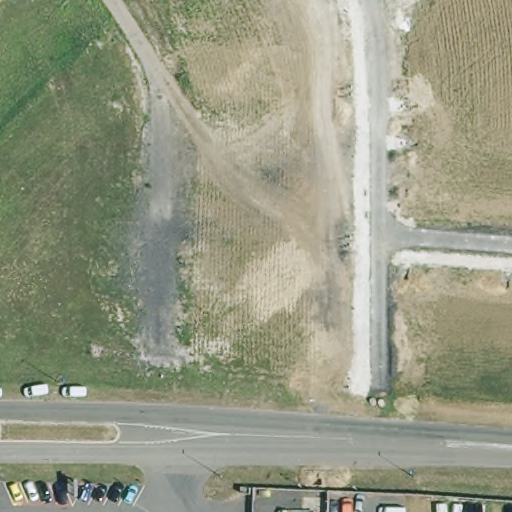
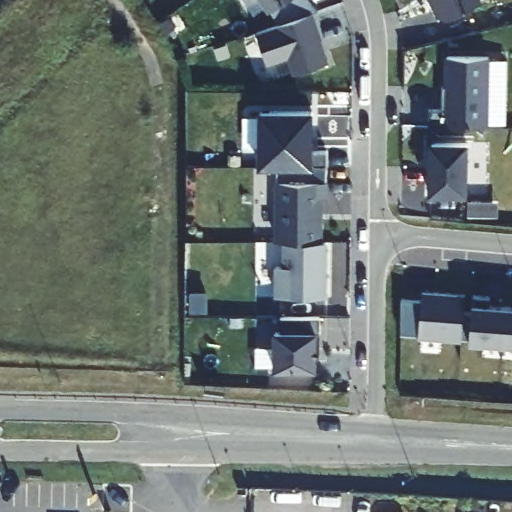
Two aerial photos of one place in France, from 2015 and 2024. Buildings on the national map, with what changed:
new [(269,11),(262,0),(284,0),(269,11)]
new [(483,1),(448,18),(440,15),(434,4),(436,0),(483,0),(483,1)]
new [(329,61),(294,74),(289,57),(268,64),(258,30),(313,12),(329,61)]
new [(489,55),(489,126),(431,125),(431,110),(443,110),(443,86),(448,87),(447,57),(489,55)]
new [(314,109),(314,149),(328,150),(328,180),(329,180),(329,195),(324,195),(324,240),(328,241),(327,296),(276,295),(276,265),(282,265),(282,240),(277,240),(279,166),(259,164),(260,108),(314,109)]
new [(472,135),(471,200),(424,198),(426,134),(472,135)]
new [(417,291),(429,291),(431,283),(442,283),(442,292),(461,293),(459,343),(415,340),(417,291)]
new [(402,296),(417,297),(416,332),(402,331),(402,296)]
new [(485,303),(486,298),(498,299),(497,305),(512,306),(512,347),(467,344),(469,303),(485,303)]
new [(318,330),(318,368),(274,369),(274,328),(282,328),(283,317),(319,317),(318,330)]

